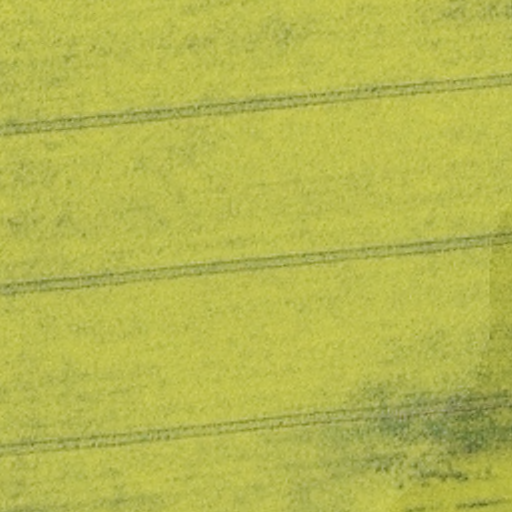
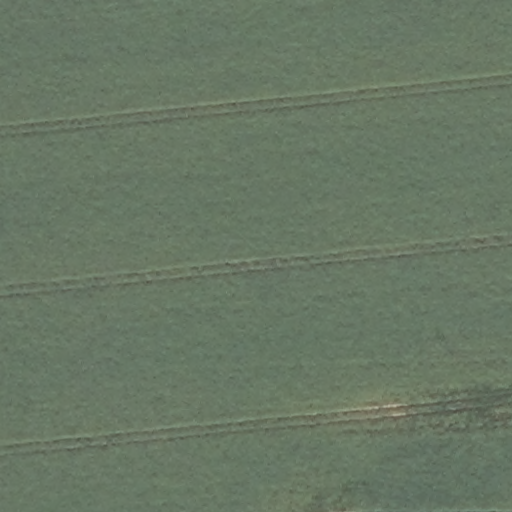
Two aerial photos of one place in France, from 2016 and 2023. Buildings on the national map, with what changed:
[]

